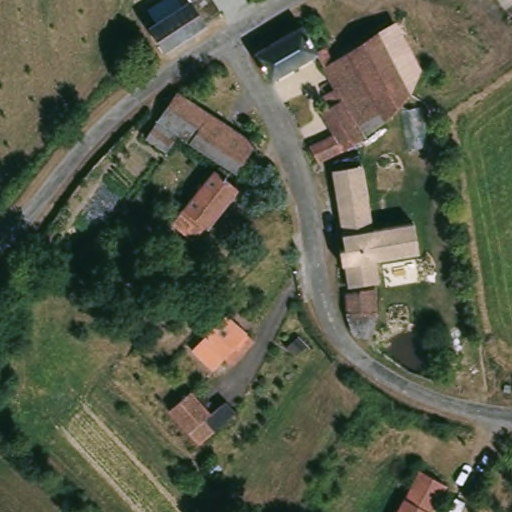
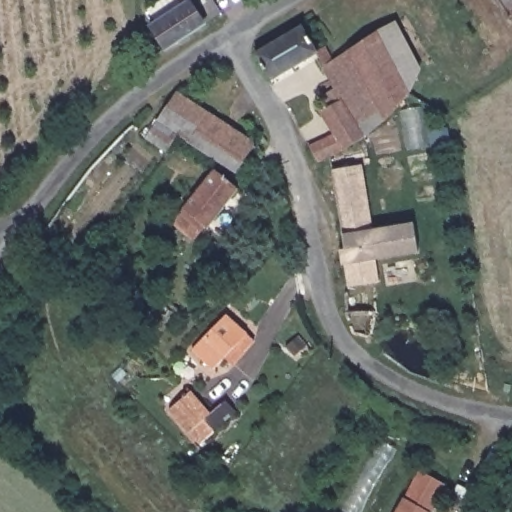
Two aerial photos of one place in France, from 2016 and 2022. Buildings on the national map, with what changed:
unchanged [(154,29),(160,25),(150,13),(169,0),(193,0),(194,3),(197,0),(214,0),(224,17),(168,51),(154,29)]
unchanged [(270,81),(255,54),(303,24),(320,49),(315,52),(270,81)]
unchanged [(395,26),(420,74),(419,76),(411,94),(378,36),(395,26)]
unchanged [(320,166),(310,147),(336,133),(321,109),(330,104),(323,94),(335,86),(315,52),(320,49),(325,46),(334,62),(378,36),(411,94),(411,95),(403,104),(394,115),(375,131),(365,140),(320,166)]
unchanged [(260,146),(240,169),(183,128),(171,143),(150,130),(183,88),(260,146)]
unchanged [(340,234),(331,170),(364,165),(377,228),(415,221),(420,252),(380,260),(378,284),(348,289),(344,264),(340,234)]
unchanged [(177,220),(189,206),(201,191),(221,166),(222,167),(234,176),(244,185),(224,209),(212,224),(200,238),(177,220)]
unchanged [(230,360),(218,372),(195,352),(229,316),(259,343),(240,370),(230,360)]
unchanged [(205,444),(200,438),(170,410),(196,385),(212,401),(212,402),(224,415),(216,422),(222,429),(205,444)]
unchanged [(434,512),(400,512),(423,466),(426,465),(452,479),(434,512)]

